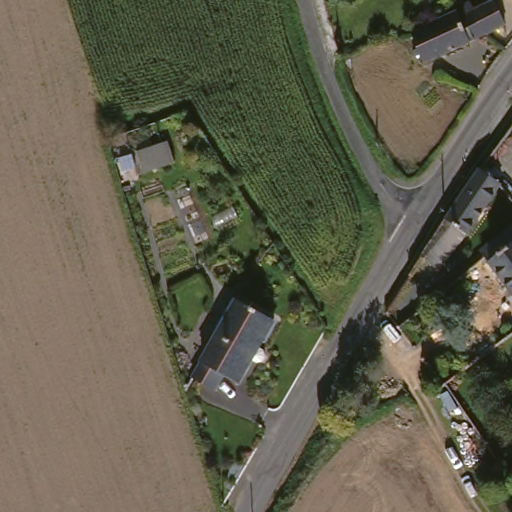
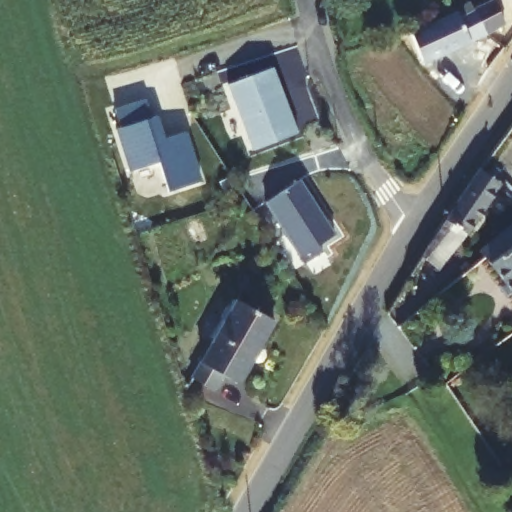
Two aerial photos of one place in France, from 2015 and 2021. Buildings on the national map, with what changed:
unchanged [(466,19),(483,10),(502,0),(511,25),(495,33),(470,46),(432,61),(419,30),(462,12),(466,19)]
new [(272,69),(298,135),(253,151),(228,84),(272,69)]
new [(116,130),(121,128),(115,110),(147,101),(153,117),(157,115),(165,141),(187,134),(203,183),(169,192),(159,160),(129,171),(116,130)]
unchanged [(503,191),(470,239),(466,237),(464,249),(440,274),(427,259),(460,206),(484,170),(503,191)]
unchanged [(512,228),(512,280),(488,247),(512,228)]
unchanged [(243,301),(281,323),(247,385),(209,364),(243,301)]

